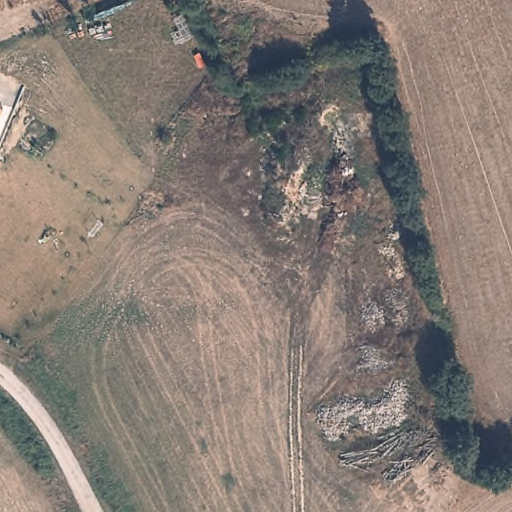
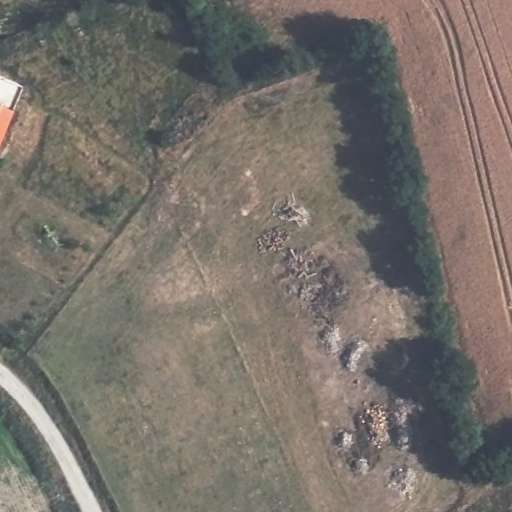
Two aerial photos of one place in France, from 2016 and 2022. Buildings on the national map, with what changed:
unchanged [(3,104),(0,111),(0,103),(3,104)]

